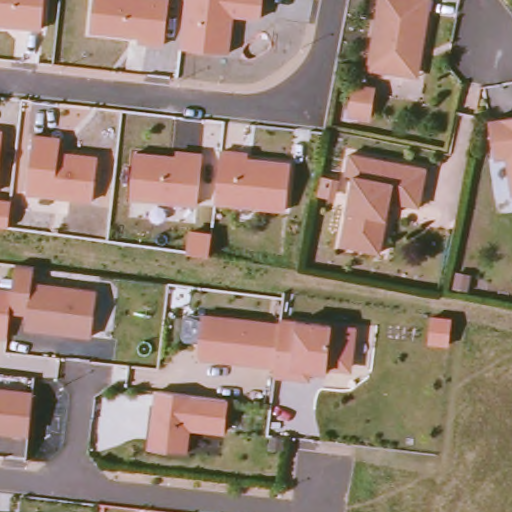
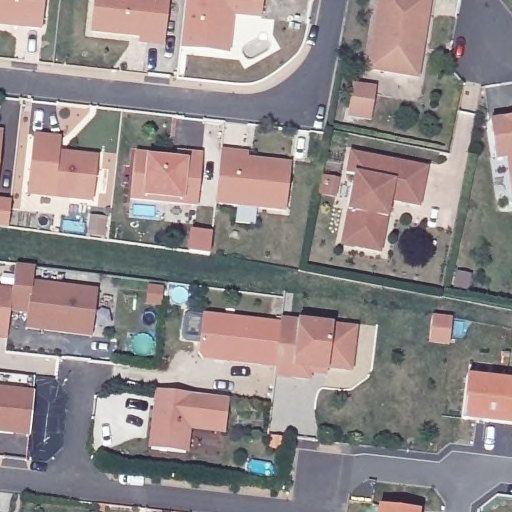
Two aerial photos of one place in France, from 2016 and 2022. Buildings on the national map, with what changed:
unchanged [(0,27),(0,0),(47,0),(42,31),(0,27)]
unchanged [(140,45),(140,38),(93,33),(96,0),(170,0),(165,47),(140,45)]
unchanged [(182,50),(187,0),(263,0),(261,19),(236,16),(231,55),(182,50)]
unchanged [(411,78),(370,69),(384,0),(434,0),(425,49),(418,79),(411,78)]
unchanged [(368,94),(363,118),(345,114),(349,90),(368,94)]
unchanged [(512,154),(503,156),(498,116),(512,114),(512,154)]
unchanged [(3,135),(0,169),(0,134),(3,135)]
unchanged [(28,197),(35,136),(61,141),(60,154),(99,159),(95,204),(28,197)]
unchanged [(427,168),(419,203),(392,197),(380,250),(355,244),(357,233),(341,229),(353,173),(346,171),(350,150),(427,168)]
unchanged [(217,205),(223,152),(252,155),(251,161),(292,165),(287,213),(217,205)]
unchanged [(132,201),(136,154),(178,158),(179,153),(205,156),(198,210),(132,201)]
unchanged [(0,229),(0,201),(11,203),(10,230),(0,229)]
unchanged [(30,314),(12,312),(13,306),(14,293),(15,283),(16,267),(40,270),(37,285),(102,294),(96,339),(28,331),(30,314)]
unchanged [(468,272),(466,285),(452,283),(455,269),(468,272)]
unchanged [(12,312),(10,332),(10,341),(0,339),(0,291),(14,293),(13,306),(12,312)]
unchanged [(205,362),(201,357),(205,319),(282,328),(279,353),(277,370),(205,362)]
unchanged [(277,370),(279,353),(282,328),(283,324),(357,333),(353,370),(345,374),(327,372),(327,374),(310,372),(309,383),(276,379),(277,370)]
new [(512,382),(512,425),(462,419),(467,377),(512,382)]
unchanged [(31,396),(30,418),(28,438),(0,435),(0,392),(31,396)]
unchanged [(228,403),(225,435),(190,431),(187,457),(153,453),(159,395),(228,403)]
new [(418,512),(379,512),(380,507),(418,511),(418,512)]

